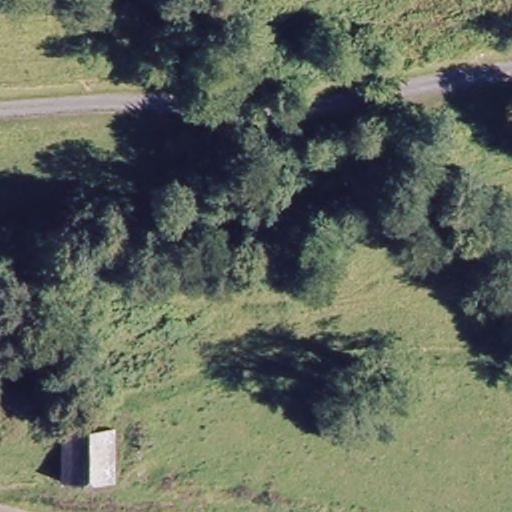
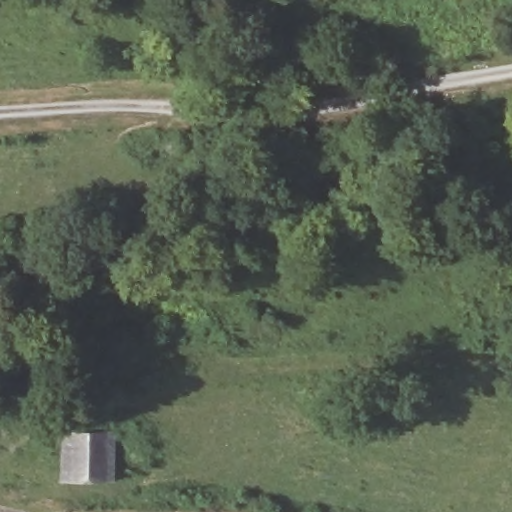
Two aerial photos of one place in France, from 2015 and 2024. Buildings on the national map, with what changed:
unchanged [(112,428),(109,480),(58,478),(61,425),(112,428)]

